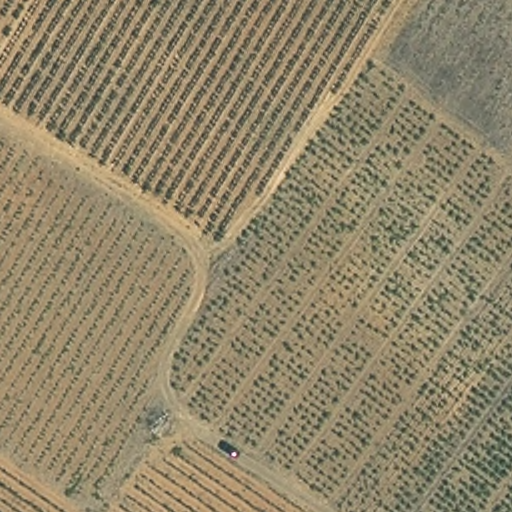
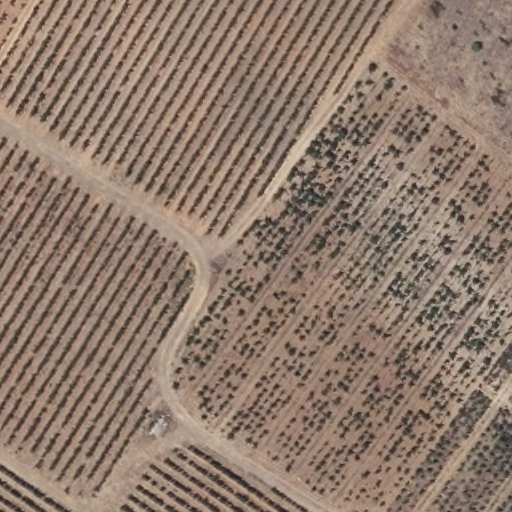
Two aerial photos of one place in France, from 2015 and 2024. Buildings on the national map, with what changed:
unchanged [(171,419),(162,430),(155,425),(164,410),(171,419)]

